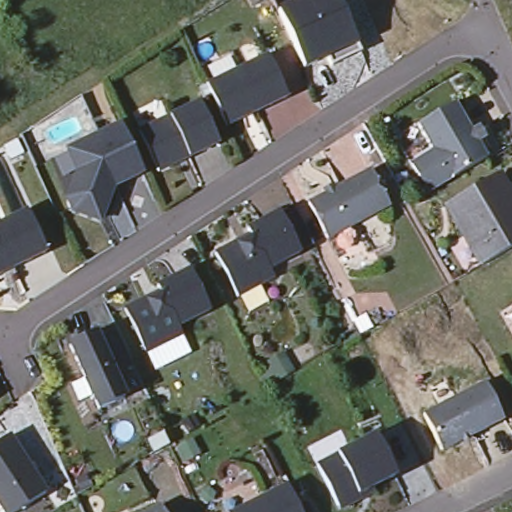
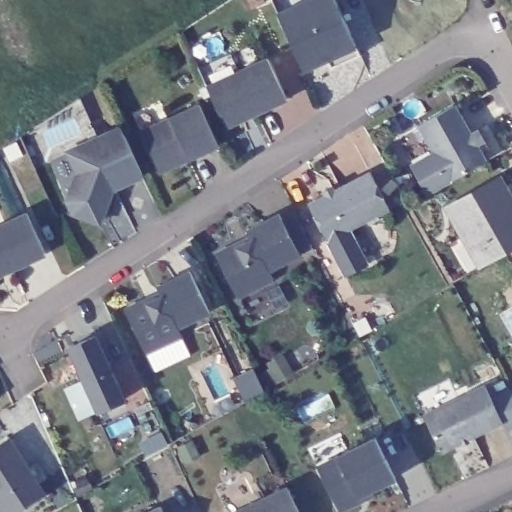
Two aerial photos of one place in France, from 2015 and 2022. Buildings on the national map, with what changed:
unchanged [(334,0),(361,59),(332,73),(327,64),(305,74),(301,66),(279,18),(317,0),(334,0)]
unchanged [(203,90),(264,62),(282,102),(222,132),(203,90)]
unchanged [(408,165),(430,153),(415,125),(451,104),(484,160),(446,181),(424,193),(408,165)]
unchanged [(136,136),(195,109),(214,149),(155,177),(136,136)]
unchanged [(60,149),(112,125),(134,173),(105,186),(91,219),(62,209),(59,200),(70,171),(60,149)]
unchanged [(305,209),(366,177),(385,213),(324,244),(305,209)]
unchanged [(495,179),(512,208),(512,247),(477,267),(444,207),(495,179)]
unchanged [(275,209),(295,248),(265,264),(269,274),(235,292),(212,248),(233,237),(247,230),(244,225),(275,209)]
unchanged [(23,217),(41,257),(0,276),(0,228),(23,217)]
unchanged [(187,272),(205,311),(175,325),(179,334),(143,351),(122,308),(144,298),(157,291),(155,286),(187,272)]
unchanged [(67,350),(92,339),(120,403),(95,414),(67,350)]
unchanged [(480,386),(498,420),(437,451),(420,415),(480,386)]
unchanged [(353,501),(335,509),(313,467),(371,437),(390,476),(368,488),(370,493),(353,501)]
unchanged [(5,441),(40,497),(18,512),(0,512),(0,444),(5,441)]
unchanged [(284,487),(295,512),(231,512),(284,487)]
unchanged [(157,506),(160,512),(145,512),(157,506)]

